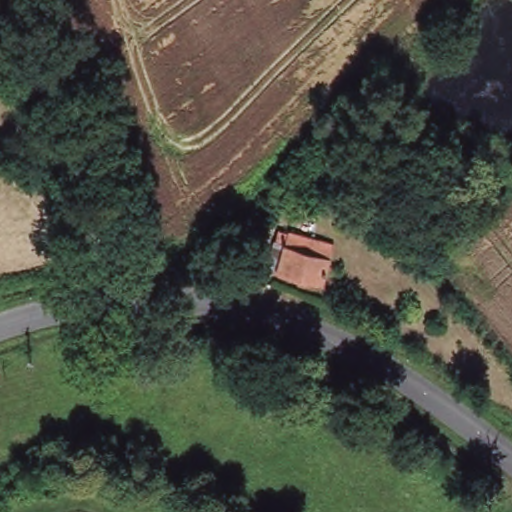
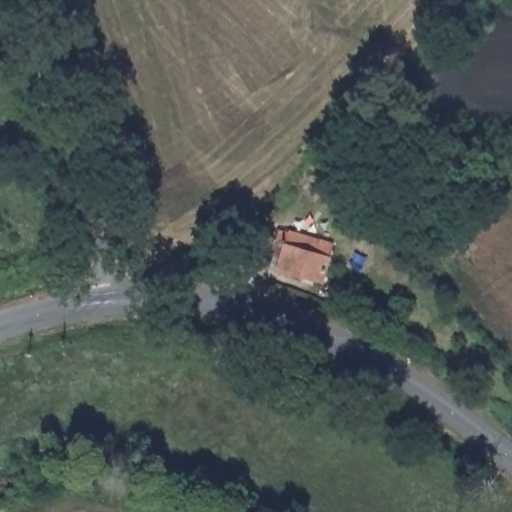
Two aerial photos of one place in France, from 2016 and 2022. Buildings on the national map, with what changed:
unchanged [(37,144),(29,149),(21,136),(30,131),(37,144)]
unchanged [(273,262),(282,237),(286,227),(341,249),(336,260),(327,283),(273,262)]

